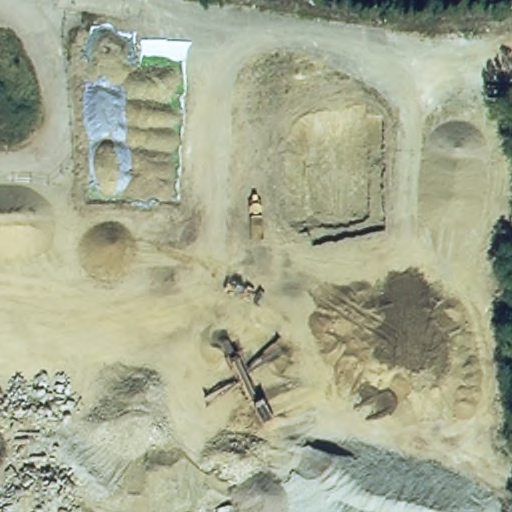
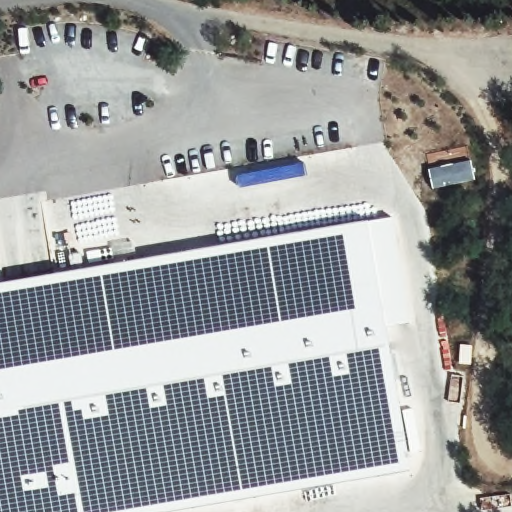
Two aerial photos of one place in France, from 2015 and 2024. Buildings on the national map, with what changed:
demolished [(305,132),(371,136),(367,210),(300,205),(305,132)]
new [(369,221),(412,471),(176,512),(0,512),(0,282),(369,221)]
demolished [(282,291),(293,291),(295,237),(340,240),(333,364),(279,361),(282,291)]
demolished [(155,287),(152,376),(0,369),(0,278),(155,287)]

